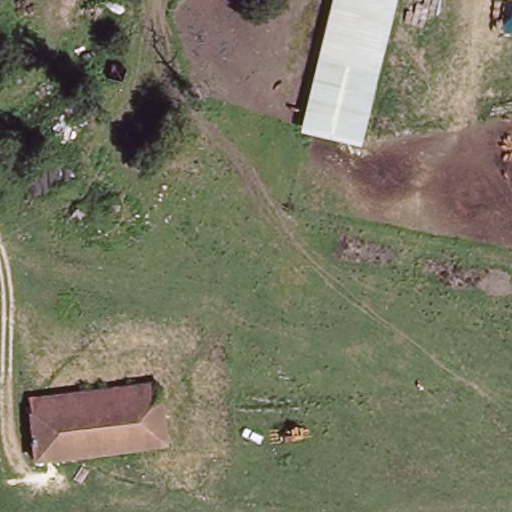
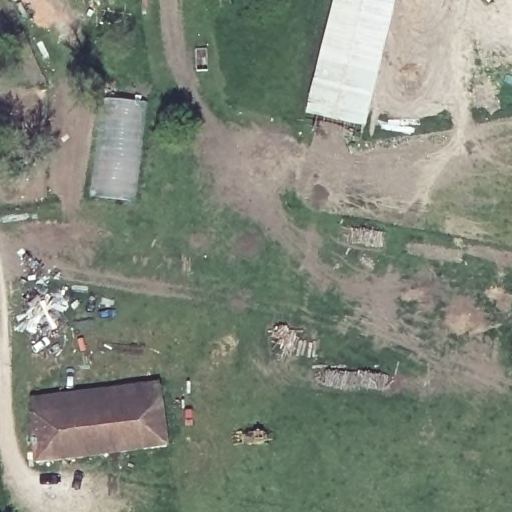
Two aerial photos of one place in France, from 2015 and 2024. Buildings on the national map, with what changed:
unchanged [(397,0),(364,146),(303,134),(336,0),(397,0)]
new [(103,96),(148,102),(135,203),(89,197),(103,96)]
unchanged [(26,410),(156,382),(170,454),(37,480),(26,410)]

